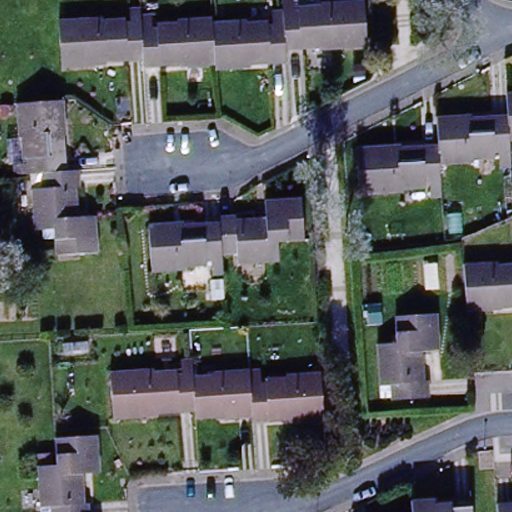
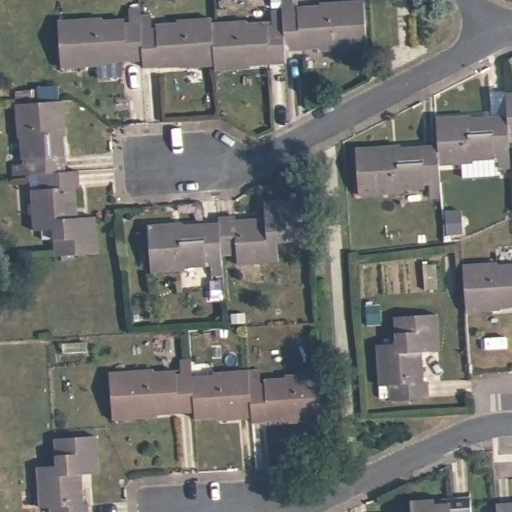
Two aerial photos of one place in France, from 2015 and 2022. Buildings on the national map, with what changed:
unchanged [(287,34),(287,22),(300,22),(300,13),(322,12),(322,6),(353,6),(353,57),(336,56),(336,47),(316,47),(316,57),(288,57),(287,34)]
unchanged [(141,35),(141,32),(155,32),(155,24),(169,24),(169,16),(203,15),(203,23),(205,64),(188,64),(188,57),(172,57),(172,66),(134,66),(134,36),(141,35)]
unchanged [(241,24),(241,28),(260,28),(261,35),(287,34),(288,57),(288,67),(251,66),(251,62),(235,62),(235,71),(214,71),(214,63),(205,64),(203,23),(241,24)]
unchanged [(134,66),(102,66),(102,61),(85,60),(85,76),(61,76),(63,25),(88,25),(88,31),(113,30),(113,35),(134,36),(134,66)]
unchanged [(33,172),(33,152),(26,152),(26,133),(19,133),(18,105),(66,102),(66,122),(58,123),(59,134),(66,134),(68,171),(47,172),(33,172)]
unchanged [(512,102),(512,149),(504,150),(503,122),(503,102),(512,102)]
unchanged [(445,123),(462,122),(462,134),(469,133),(469,122),(503,122),(504,150),(504,160),(475,161),(474,170),(445,171),(445,156),(445,123)]
unchanged [(445,171),(445,186),(424,187),(424,196),(403,195),(402,205),(370,206),(369,159),(391,157),(390,166),(406,167),(406,157),(445,156),(445,171)]
unchanged [(68,171),(79,171),(80,188),(75,191),(75,206),(67,206),(67,222),(90,222),(90,257),(62,257),(63,240),(39,240),(38,194),(47,194),(47,172),(68,171)]
unchanged [(309,236),(289,237),(288,257),(246,258),(246,250),(222,251),(220,232),(220,220),(241,219),(241,222),(256,222),(256,232),(270,231),(271,207),(307,206),(309,236)]
unchanged [(222,251),(223,264),(205,264),(205,273),(183,275),(184,281),(150,282),(148,237),(170,236),(170,243),(185,242),(186,234),(220,232),(222,251)]
unchanged [(490,312),(472,312),(470,265),(498,262),(498,267),(512,267),(512,303),(491,304),(490,312)]
unchanged [(433,322),(435,357),(410,358),(410,372),(420,373),(422,391),(428,389),(428,405),(395,406),(395,390),(380,391),(380,345),(403,345),(403,322),(433,322)]
unchanged [(198,418),(162,420),(162,414),(147,415),(147,422),(123,422),(120,374),(154,371),(153,377),(175,377),(174,382),(198,382),(199,387),(198,418)]
unchanged [(303,426),(302,419),(286,420),(285,427),(254,429),(253,423),(252,393),(270,392),(269,383),(291,383),(290,376),(318,375),(321,426),(303,426)]
unchanged [(253,423),(234,424),(233,416),(222,417),(223,423),(198,424),(198,418),(199,387),(221,385),(221,378),(251,376),(252,393),(253,423)]
unchanged [(59,508),(49,509),(47,457),(63,456),(64,436),(95,434),(96,475),(74,475),(75,488),(84,488),(84,506),(94,506),(93,512),(59,512),(59,508)]
unchanged [(412,490),(442,488),(442,496),(468,495),(469,512),(413,512),(413,508),(412,490)]
unchanged [(499,507),(512,507),(512,512),(499,512),(499,507)]
unchanged [(390,509),(413,508),(413,512),(390,512),(390,509)]

